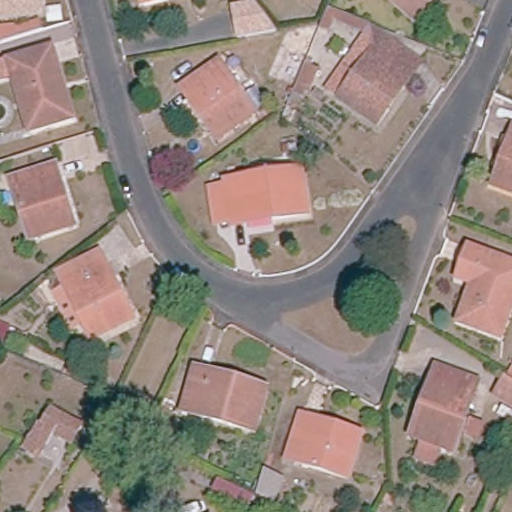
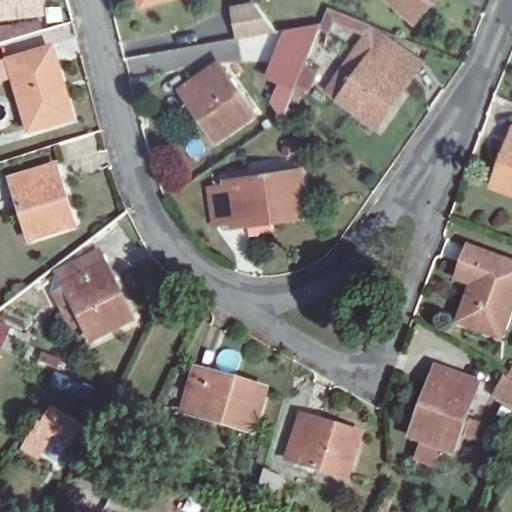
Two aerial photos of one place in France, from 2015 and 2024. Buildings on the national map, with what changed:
unchanged [(0,19),(0,0),(47,0),(48,9),(0,19)]
unchanged [(149,0),(167,0),(150,5),(149,0)]
unchanged [(234,5),(257,0),(283,31),(241,39),(234,5)]
unchanged [(394,0),(441,0),(418,24),(394,0)]
unchanged [(328,9),(372,25),(363,36),(336,26),(322,62),(309,60),(328,9)]
new [(286,30),(322,24),(309,60),(321,62),(306,97),(294,94),(284,118),(272,101),(280,84),(265,78),(286,30)]
unchanged [(359,41),(363,36),(372,25),(424,66),(412,82),(359,41)]
unchanged [(335,73),(359,41),(412,82),(378,127),(337,96),(325,87),(335,73)]
unchanged [(57,51),(82,124),(40,137),(21,80),(4,85),(0,70),(57,51)]
unchanged [(220,65),(254,115),(219,140),(185,90),(220,65)]
unchanged [(512,137),(512,193),(493,186),(512,137)]
unchanged [(209,182),(227,179),(304,165),(311,211),(234,224),(216,226),(209,182)]
unchanged [(62,167),(80,229),(32,245),(16,182),(62,167)]
unchanged [(465,325),(479,286),(464,280),(469,263),(475,249),(489,255),(512,263),(512,320),(504,339),(465,325)]
unchanged [(101,258),(130,312),(92,335),(62,278),(101,258)]
new [(9,327),(0,349),(0,323),(9,327)]
unchanged [(450,454),(437,448),(430,466),(414,460),(421,442),(409,437),(420,409),(425,411),(433,387),(428,385),(436,365),(477,381),(465,416),(487,424),(477,453),(454,443),(450,454)]
unchanged [(198,375),(266,395),(256,435),(190,416),(198,375)]
unchanged [(500,377),(508,382),(512,375),(512,405),(492,392),(500,377)]
unchanged [(38,428),(40,429),(50,412),(87,433),(74,455),(67,442),(52,433),(40,457),(25,450),(38,428)]
unchanged [(311,416),(365,441),(349,479),(294,455),(311,416)]

